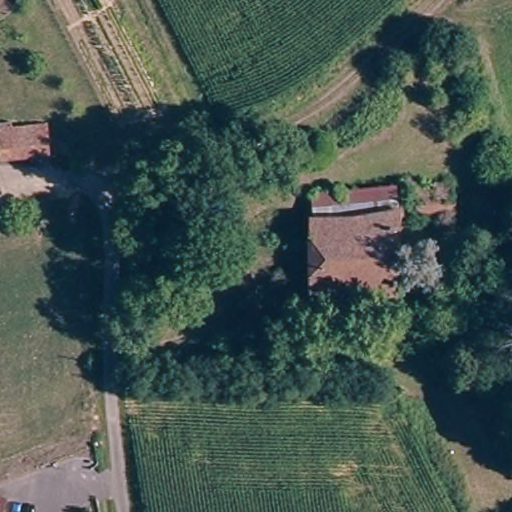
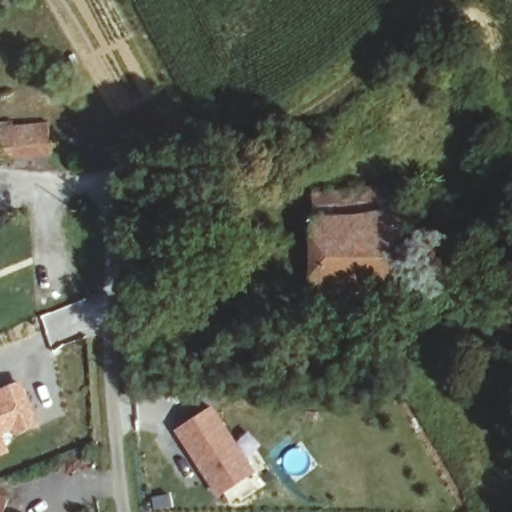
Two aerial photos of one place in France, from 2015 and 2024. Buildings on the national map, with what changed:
unchanged [(48,148),(3,153),(0,131),(0,127),(45,122),(48,148)]
unchanged [(448,209),(417,210),(415,180),(446,179),(448,209)]
unchanged [(309,204),(410,200),(412,214),(396,215),(309,219),(309,204)]
unchanged [(309,219),(396,215),(399,290),(310,291),(309,219)]
new [(0,394),(19,387),(35,426),(16,434),(14,429),(0,436),(0,402),(3,401),(0,394)]
new [(256,473),(218,498),(175,431),(214,407),(256,473)]
unchanged [(0,495),(10,498),(5,512),(0,512),(0,495)]

